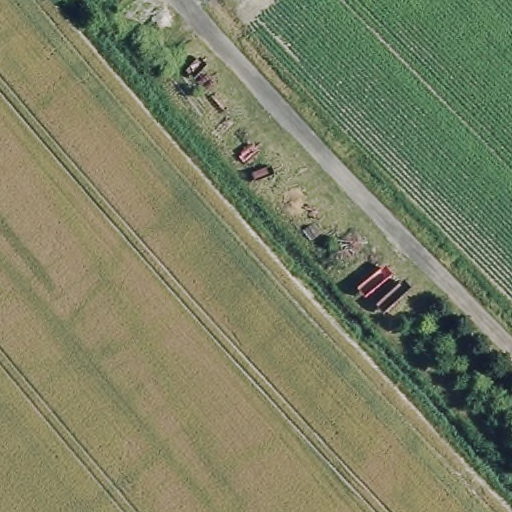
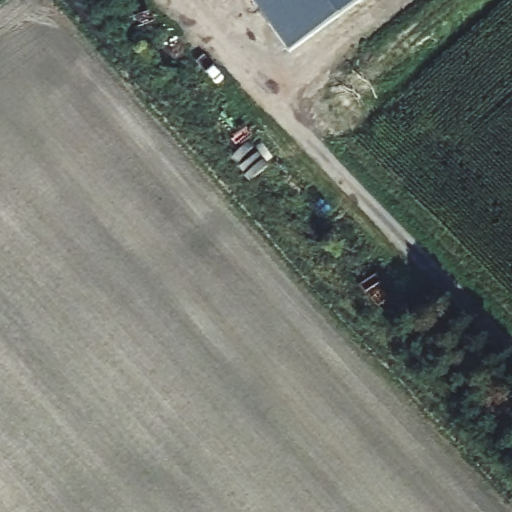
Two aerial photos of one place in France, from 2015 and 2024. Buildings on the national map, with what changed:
new [(289,54),(250,0),(363,0),(289,54)]

